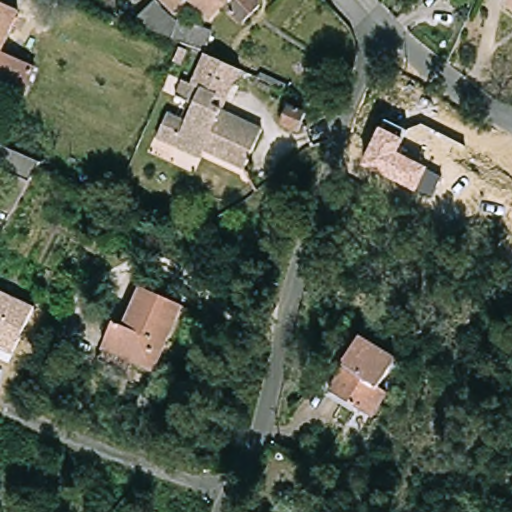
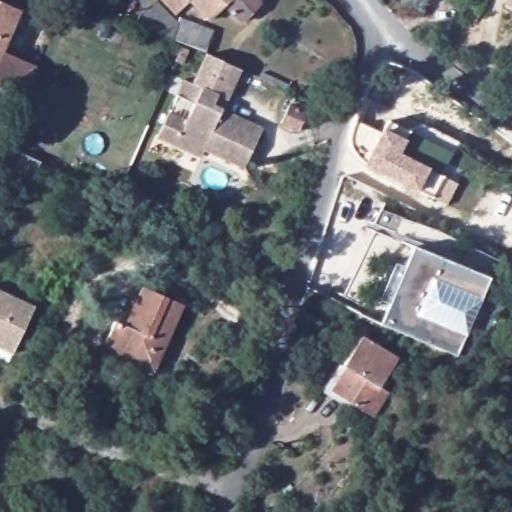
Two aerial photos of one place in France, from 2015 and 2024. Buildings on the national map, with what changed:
unchanged [(205,50),(139,22),(140,14),(154,0),(159,0),(180,19),(182,17),(213,32),(205,50)]
unchanged [(243,28),(223,7),(210,20),(192,2),(179,15),(164,0),(259,0),(265,6),(243,28)]
unchanged [(5,52),(37,67),(25,96),(0,85),(0,2),(22,13),(5,52)]
unchanged [(507,10),(512,2),(512,13),(507,10)]
unchanged [(175,141),(157,133),(168,110),(185,117),(192,101),(175,93),(182,78),(192,83),(205,54),(209,56),(238,68),(225,98),(220,107),(260,127),(242,164),(202,146),(199,152),(175,141)]
unchanged [(305,110),(298,128),(280,121),(288,103),(305,110)]
unchanged [(400,154),(430,169),(440,177),(430,199),(416,195),(364,167),(382,131),(387,123),(406,132),(403,143),(400,154)]
unchanged [(13,212),(0,206),(0,177),(4,168),(0,166),(0,141),(43,160),(13,212)]
new [(456,356),(382,326),(389,303),(378,300),(393,264),(405,266),(413,247),(488,280),(456,356)]
unchanged [(102,349),(110,330),(120,334),(142,289),(182,306),(152,371),(102,349)]
unchanged [(13,357),(0,350),(0,291),(37,310),(13,357)]
unchanged [(351,369),(348,367),(365,340),(401,365),(383,391),(390,397),(375,421),(335,393),(351,369)]

